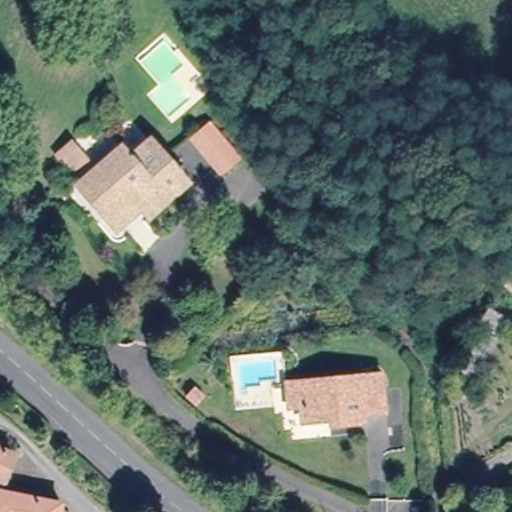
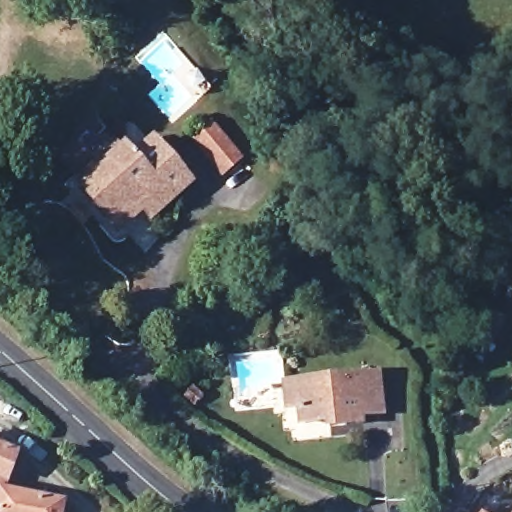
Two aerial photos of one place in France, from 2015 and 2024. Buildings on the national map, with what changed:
unchanged [(194,140),(211,122),(244,156),(227,173),(194,140)]
unchanged [(96,166),(76,186),(48,154),(69,136),(96,166)]
unchanged [(106,218),(76,186),(96,166),(118,146),(129,157),(148,138),(187,178),(148,215),(138,206),(116,227),(106,218)]
unchanged [(505,277),(512,271),(512,284),(505,277)]
unchanged [(324,415),(302,416),(301,397),(289,397),(289,376),(300,376),(379,373),(380,410),(358,411),(359,419),(339,419),(324,420),(324,415)]
unchanged [(0,490),(0,451),(15,458),(0,490)]
unchanged [(59,512),(0,512),(0,494),(60,506),(59,512)]

